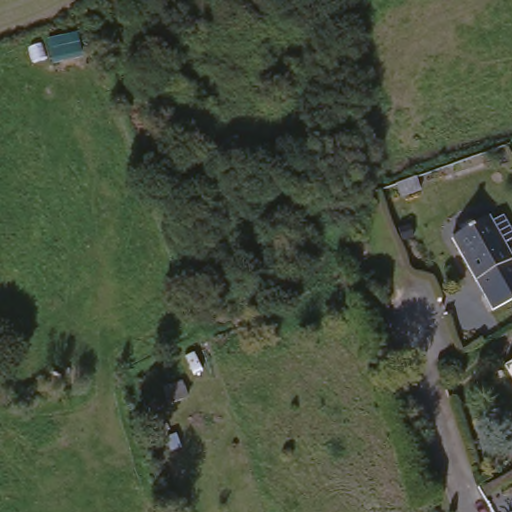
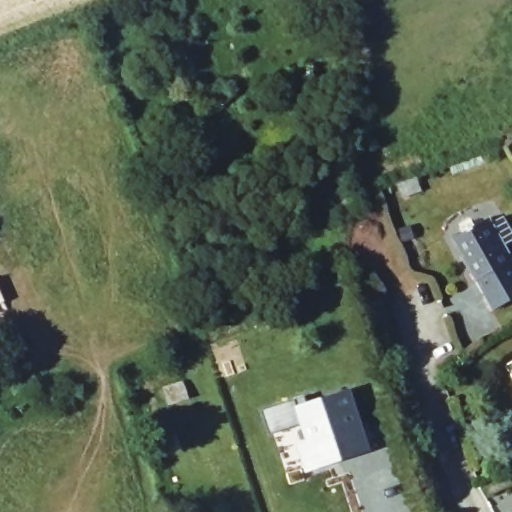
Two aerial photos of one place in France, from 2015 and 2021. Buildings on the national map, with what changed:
new [(48,40),(79,32),(85,57),(53,65),(48,40)]
unchanged [(398,195),(393,182),(411,174),(416,188),(398,195)]
unchanged [(486,296),(451,241),(462,234),(456,227),(468,218),(474,226),(487,217),(490,222),(503,214),(512,228),(512,236),(503,242),(512,257),(512,280),(486,296)]
new [(305,469),(297,443),(307,439),(301,421),(269,432),(261,407),(304,393),(306,400),(320,396),(348,387),(360,423),(364,422),(373,448),(352,454),(333,460),(305,469)]

